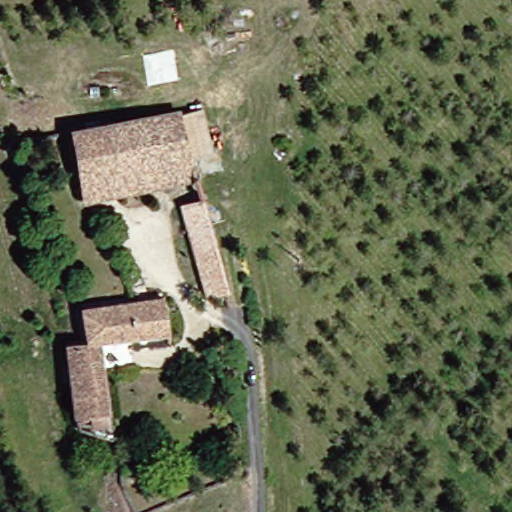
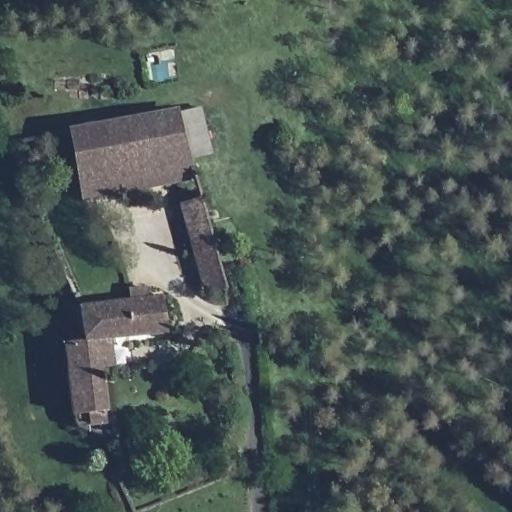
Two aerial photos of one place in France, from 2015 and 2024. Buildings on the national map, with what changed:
unchanged [(103,131),(175,112),(182,140),(201,135),(207,156),(190,161),(192,175),(121,195),(103,131)]
unchanged [(80,205),(66,142),(103,131),(121,195),(80,205)]
unchanged [(193,259),(178,203),(201,197),(215,253),(193,259)]
unchanged [(79,342),(74,310),(160,300),(169,348),(130,354),(128,336),(94,340),(79,342)]
unchanged [(105,384),(94,388),(102,427),(75,432),(57,346),(79,342),(94,340),(105,384)]

